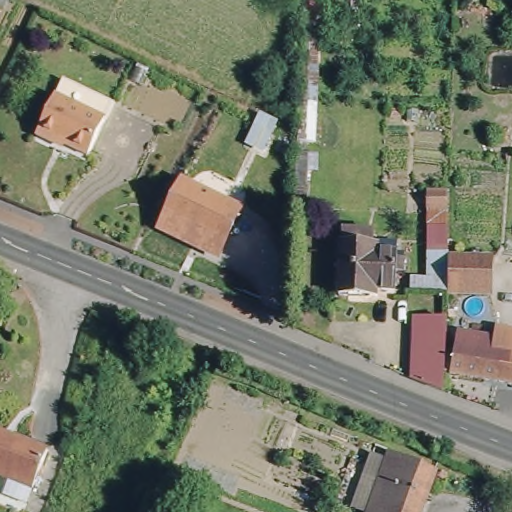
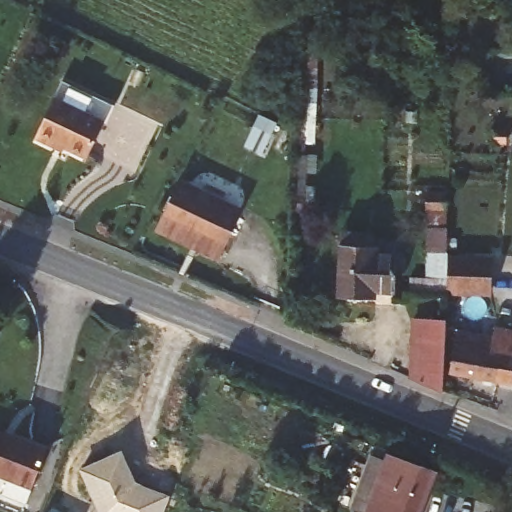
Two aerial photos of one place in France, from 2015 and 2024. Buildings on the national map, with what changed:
unchanged [(69,104),(104,121),(87,158),(55,143),(53,146),(50,144),(35,137),(54,97),(69,104)]
unchanged [(182,183),(215,199),(240,210),(237,217),(224,238),(219,247),(162,219),(167,210),(182,183)]
unchanged [(445,215),(445,224),(427,224),(427,214),(445,215)]
unchanged [(427,279),(427,228),(445,228),(445,293),(410,292),(410,278),(427,279)]
unchanged [(339,247),(342,229),(376,231),(379,244),(381,250),(395,250),(395,291),(377,291),(337,298),(339,247)]
unchanged [(504,263),(504,298),(460,297),(461,262),(504,263)]
unchanged [(410,378),(413,319),(445,320),(442,391),(410,378)]
unchanged [(512,383),(449,372),(455,330),(492,337),(494,327),(512,331),(512,383)]
unchanged [(6,489),(12,473),(0,468),(0,425),(52,445),(31,497),(6,489)]
new [(80,469),(122,449),(137,482),(170,495),(164,512),(99,512),(80,469)]
unchanged [(377,508),(362,503),(380,452),(395,457),(398,449),(444,466),(426,512),(375,512),(377,508)]

